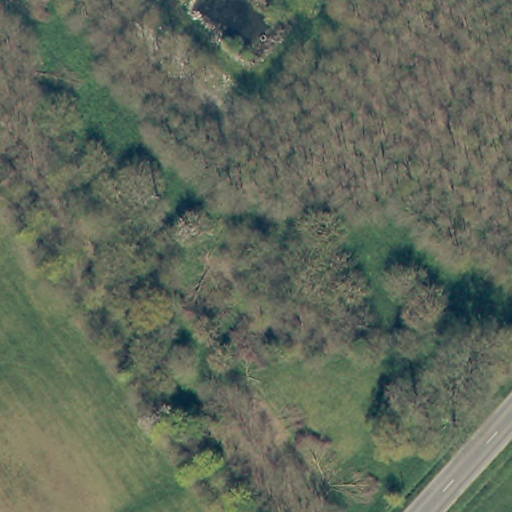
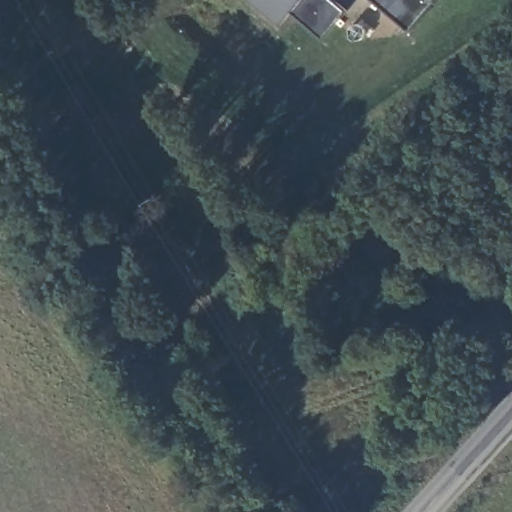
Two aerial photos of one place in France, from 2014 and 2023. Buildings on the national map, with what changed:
new [(324,38),(293,9),(282,23),(254,0),(334,0),(347,12),(324,38)]
new [(410,29),(375,0),(435,0),(410,29)]

